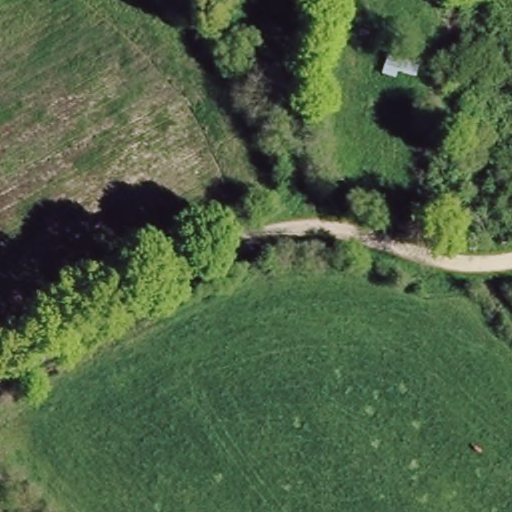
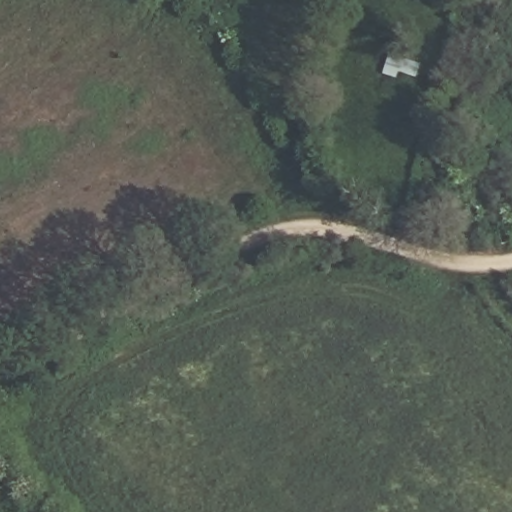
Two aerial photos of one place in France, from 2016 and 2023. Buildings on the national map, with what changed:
unchanged [(422,63),(417,80),(396,74),(395,81),(380,78),(387,53),(422,63)]

